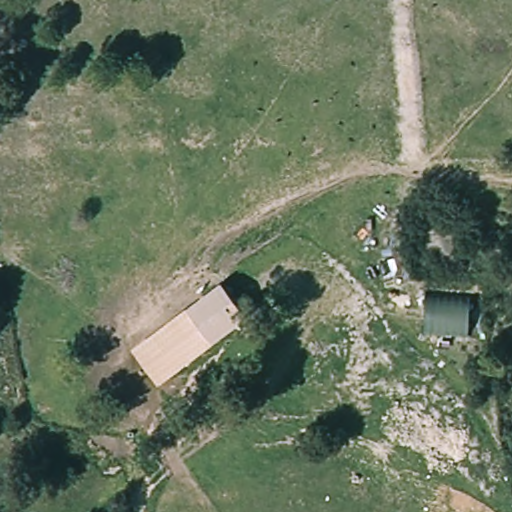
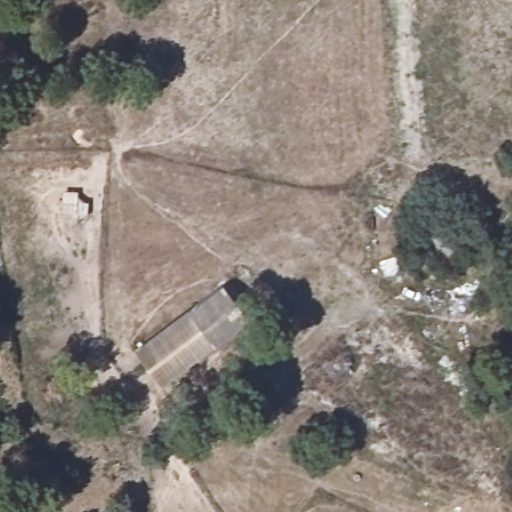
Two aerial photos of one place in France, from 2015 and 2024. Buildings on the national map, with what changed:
unchanged [(251,321),(216,348),(212,343),(161,381),(138,351),(190,315),(186,309),(223,282),(251,321)]
demolished [(472,296),(469,333),(424,330),(426,292),(472,296)]

